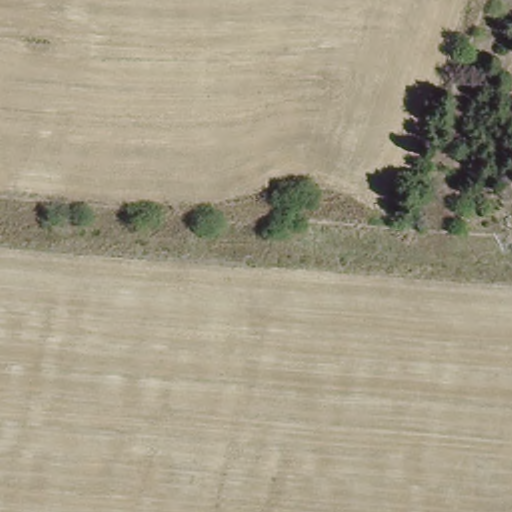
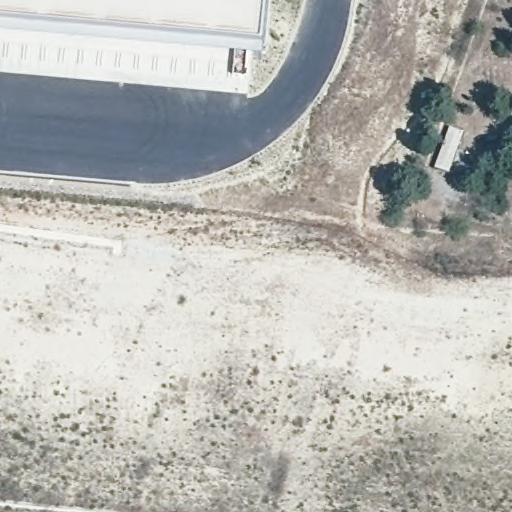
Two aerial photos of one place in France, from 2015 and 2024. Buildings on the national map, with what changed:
new [(265,48),(251,47),(160,39),(136,39),(133,39),(133,37),(56,28),(0,23),(0,0),(269,0),(265,48)]

